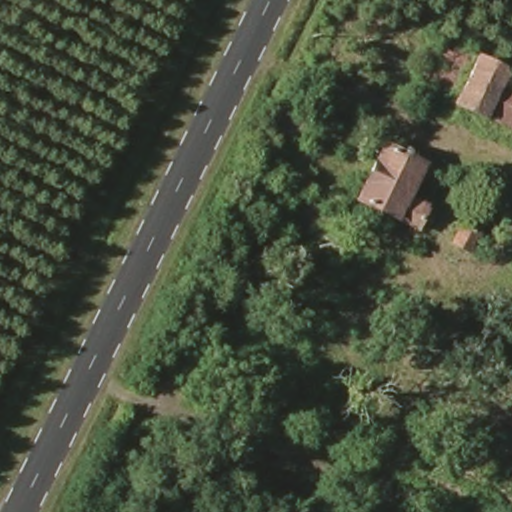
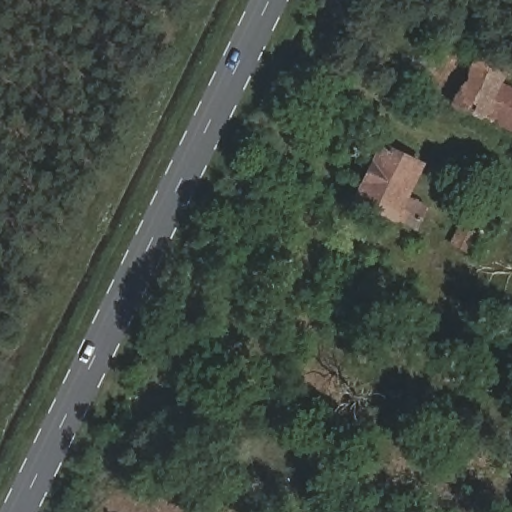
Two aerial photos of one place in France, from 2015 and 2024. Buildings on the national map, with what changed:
unchanged [(453,43),(486,61),(464,101),(430,84),(453,43)]
unchanged [(510,73),(512,74),(512,90),(511,91),(512,92),(512,126),(464,101),(486,61),(510,73)]
unchanged [(388,139),(436,163),(419,193),(434,201),(422,224),(363,195),(388,139)]
unchanged [(475,199),(501,212),(479,259),(451,249),(475,199)]

